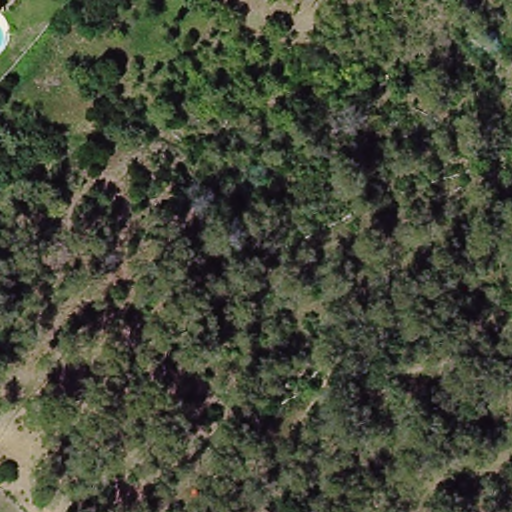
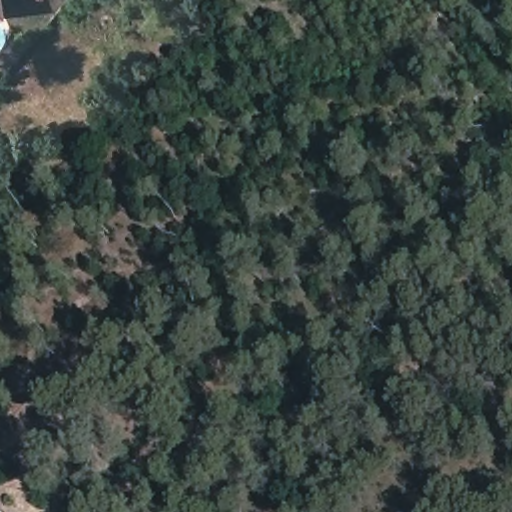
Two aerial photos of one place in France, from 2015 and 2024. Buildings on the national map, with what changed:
unchanged [(0,13),(0,0),(3,0),(4,12),(0,13)]

